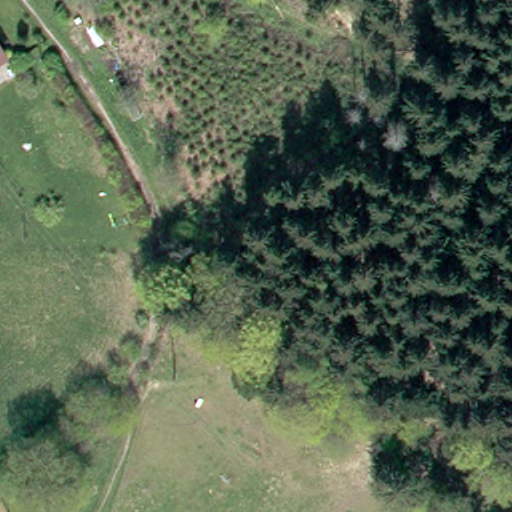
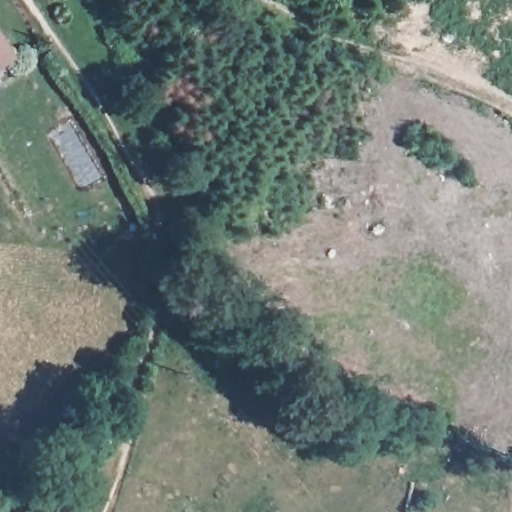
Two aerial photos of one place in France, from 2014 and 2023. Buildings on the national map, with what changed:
unchanged [(2,60),(0,62),(0,56),(2,60)]

